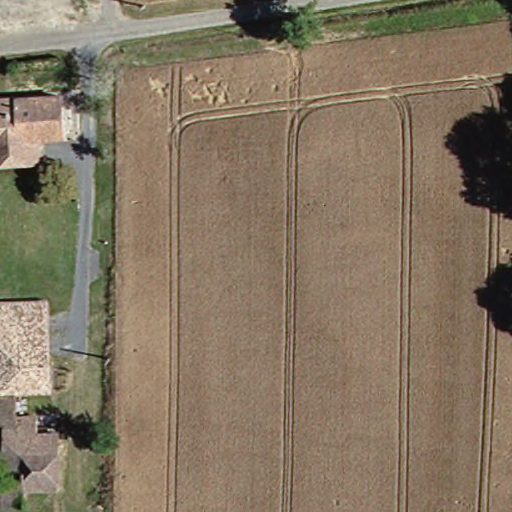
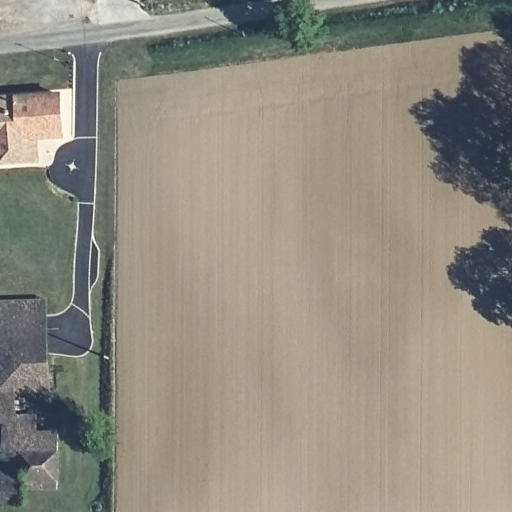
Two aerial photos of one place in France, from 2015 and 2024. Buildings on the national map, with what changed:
unchanged [(0,170),(0,105),(50,103),(51,144),(25,145),(27,170),(13,169),(0,170)]
unchanged [(0,298),(19,298),(20,315),(40,315),(38,393),(5,395),(5,421),(0,422),(0,298)]
unchanged [(13,421),(48,422),(46,446),(0,443),(0,432),(13,431),(13,421)]
unchanged [(18,512),(0,512),(0,443),(46,446),(46,466),(48,490),(49,501),(18,498),(18,512)]

